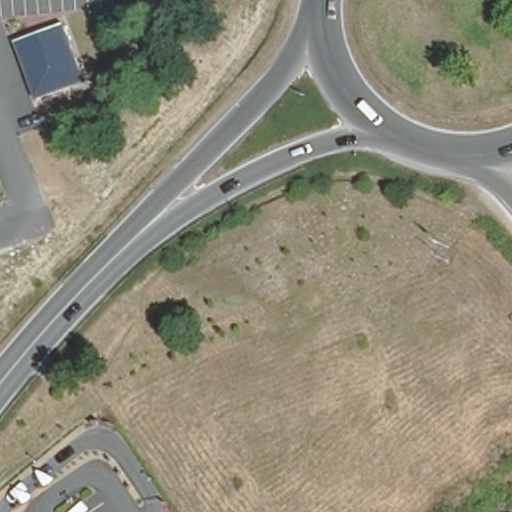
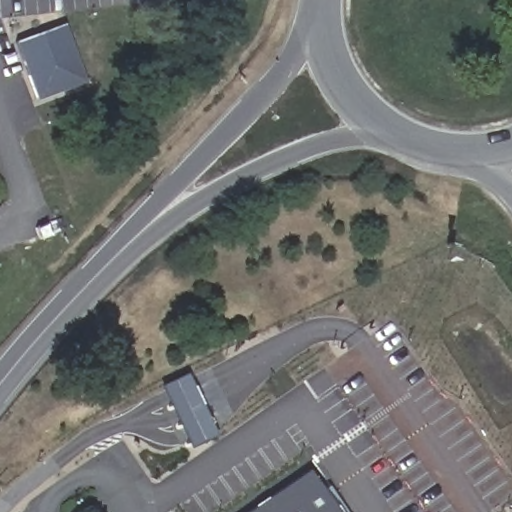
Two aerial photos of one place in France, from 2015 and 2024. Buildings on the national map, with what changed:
unchanged [(38,102),(17,42),(67,23),(88,81),(38,102)]
new [(190,448),(161,386),(186,373),(217,436),(190,448)]
new [(337,512),(248,512),(308,471),(337,512)]

